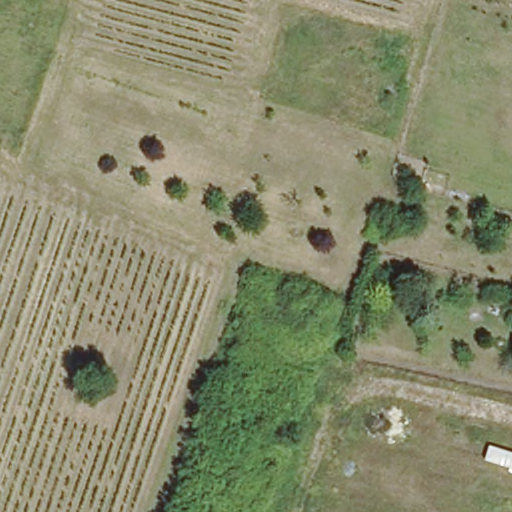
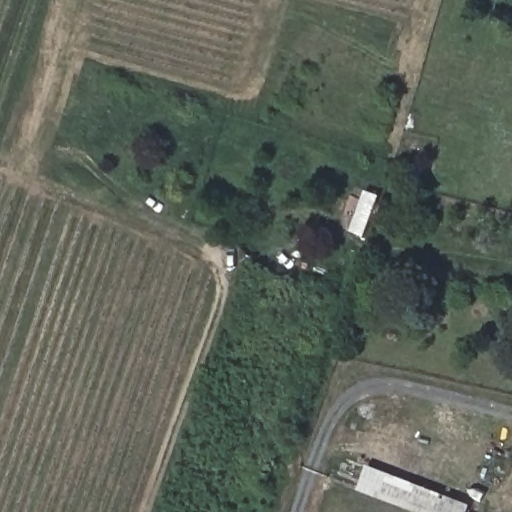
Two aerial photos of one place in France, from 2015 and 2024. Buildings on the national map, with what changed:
new [(369,465),(472,504),(469,512),(417,512),(359,489),(369,465)]

